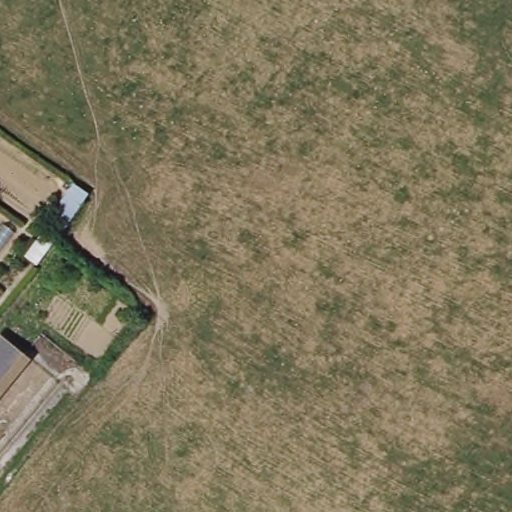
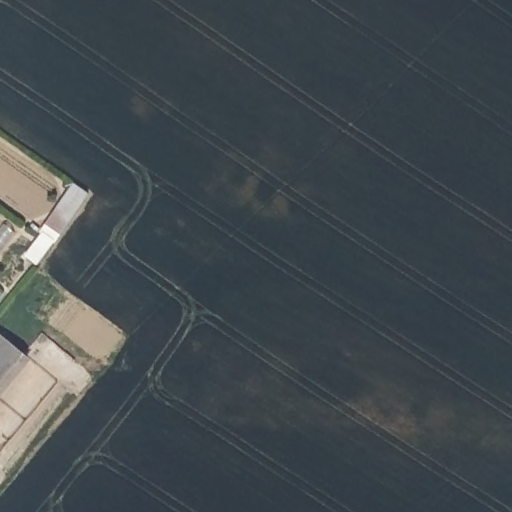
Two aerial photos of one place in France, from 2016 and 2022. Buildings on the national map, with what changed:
unchanged [(41,268),(24,257),(77,182),(94,194),(41,268)]
unchanged [(0,396),(0,351),(11,339),(33,360),(0,396)]

